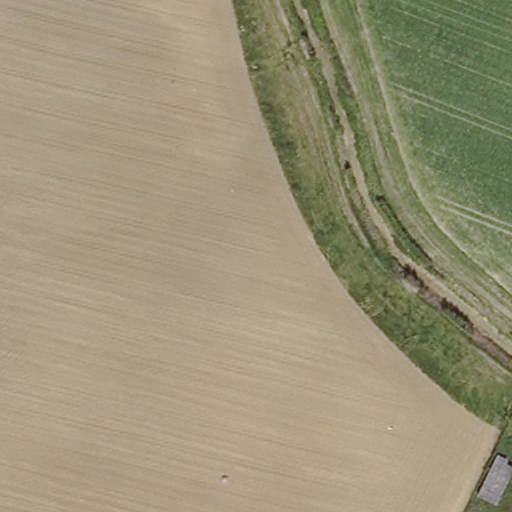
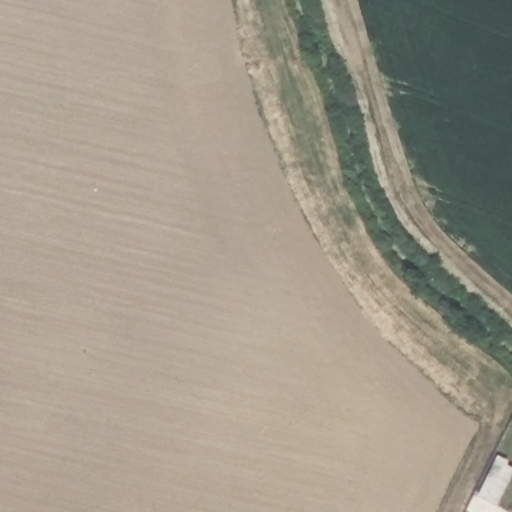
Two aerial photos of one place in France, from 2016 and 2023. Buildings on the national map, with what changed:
unchanged [(498,449),(510,452),(507,461),(512,463),(512,471),(497,500),(479,493),(498,449)]

